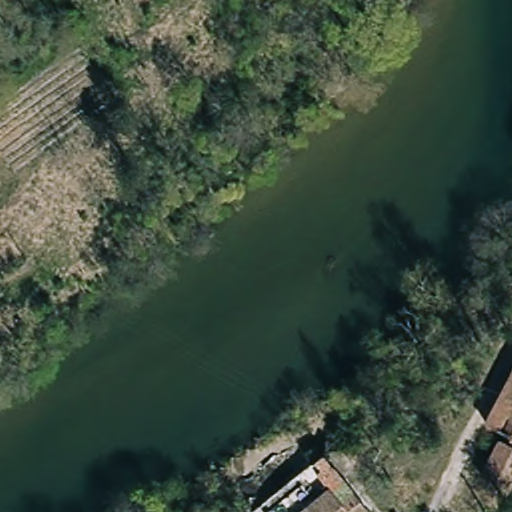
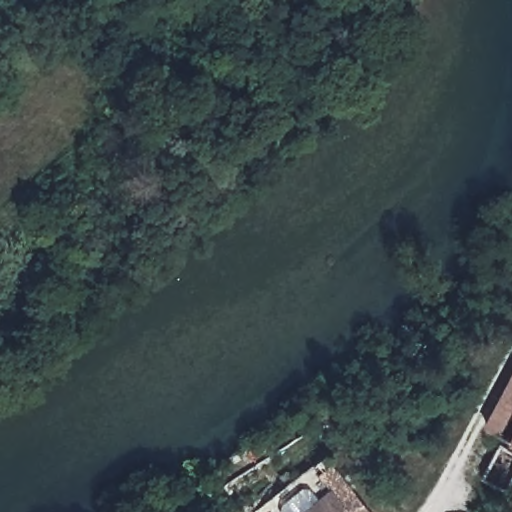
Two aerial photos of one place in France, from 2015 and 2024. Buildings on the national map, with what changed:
unchanged [(512,401),(512,437),(497,428),(512,401)]
unchanged [(511,445),(512,446),(512,491),(491,478),(511,445)]
unchanged [(369,512),(294,512),(329,485),(340,500),(357,487),(365,498),(374,508),(369,512)]

